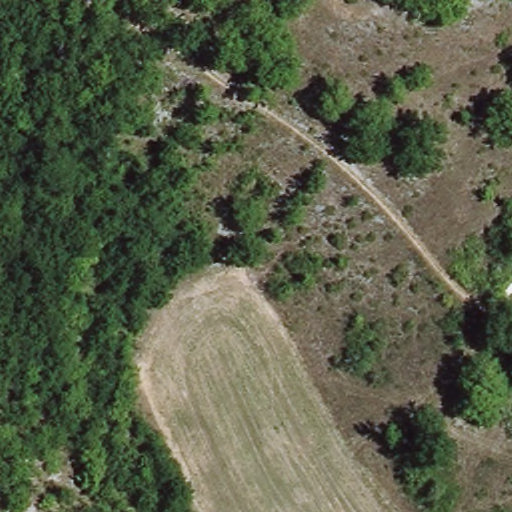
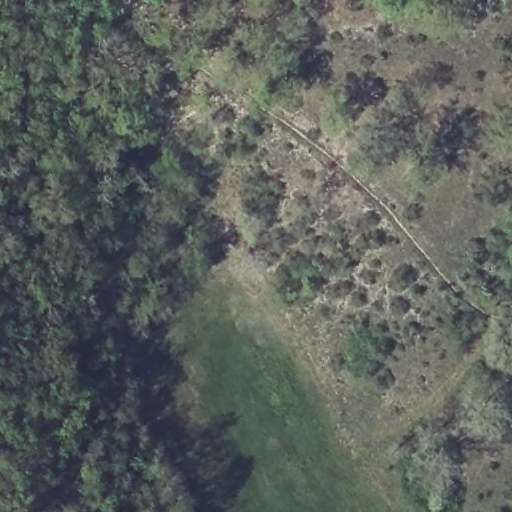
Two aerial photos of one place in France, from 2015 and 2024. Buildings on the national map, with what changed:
[]

